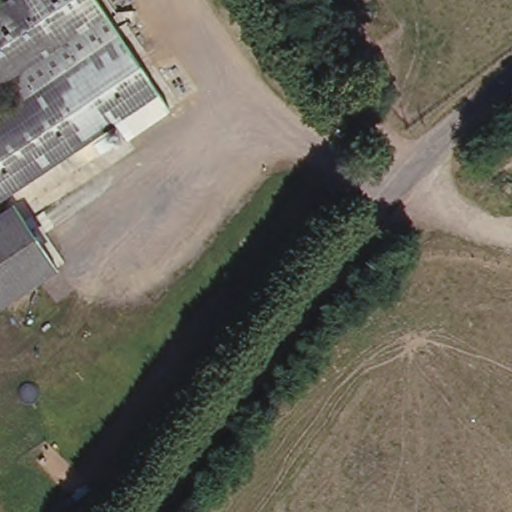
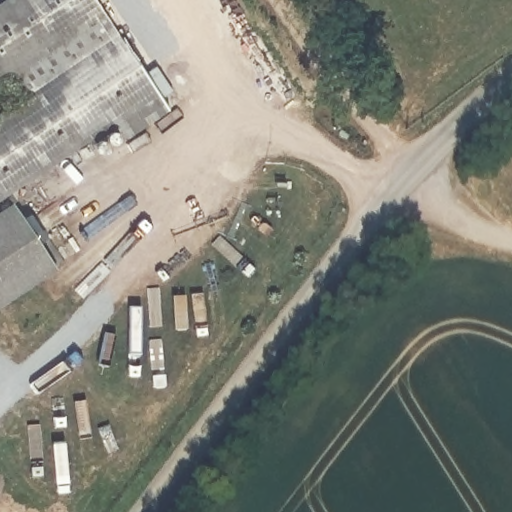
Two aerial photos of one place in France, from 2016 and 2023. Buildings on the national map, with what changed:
unchanged [(10,0),(102,0),(110,13),(0,87),(0,7),(10,0)]
unchanged [(124,33),(173,108),(131,136),(122,122),(0,203),(0,116),(124,33)]
unchanged [(16,203),(60,269),(0,309),(0,214),(16,203)]

